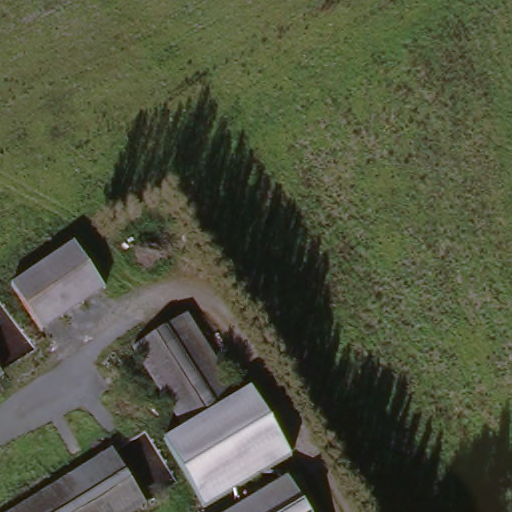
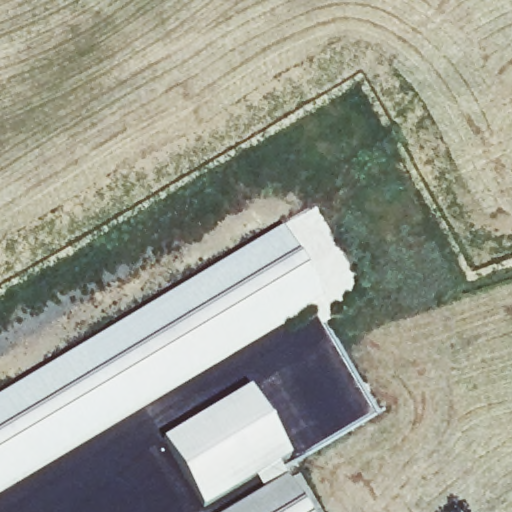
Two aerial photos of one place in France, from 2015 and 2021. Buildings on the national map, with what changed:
new [(0,490),(0,395),(279,232),(321,302),(0,490)]
demolished [(133,349),(187,315),(233,394),(182,426),(133,349)]
demolished [(0,377),(0,373),(2,376),(0,377)]
unchanged [(233,394),(247,385),(288,452),(208,502),(165,437),(182,426),(233,394)]
demolished [(108,446),(146,503),(131,512),(100,512),(73,469),(108,446)]
new [(262,494),(251,475),(274,461),(286,480),(306,512),(231,512),(262,494)]
demolished [(275,486),(291,512),(234,512),(275,486)]

